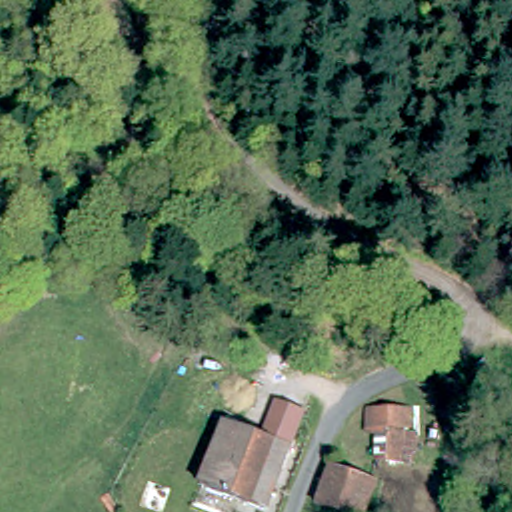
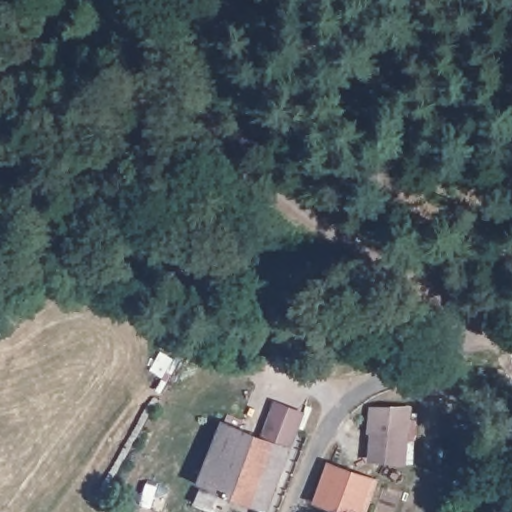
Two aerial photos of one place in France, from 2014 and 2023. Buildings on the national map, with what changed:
unchanged [(382,460),(385,433),(369,431),(368,406),(413,408),(411,428),(421,435),(414,465),(382,460)]
unchanged [(199,482),(223,420),(261,434),(270,413),(297,424),(263,508),(199,482)]
unchanged [(337,463),(381,477),(365,512),(353,512),(322,503),(337,463)]

